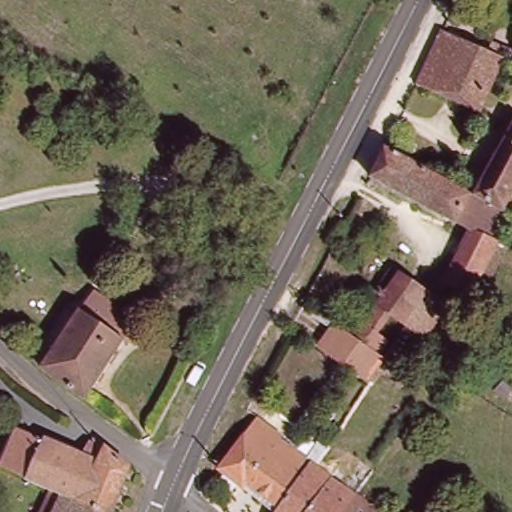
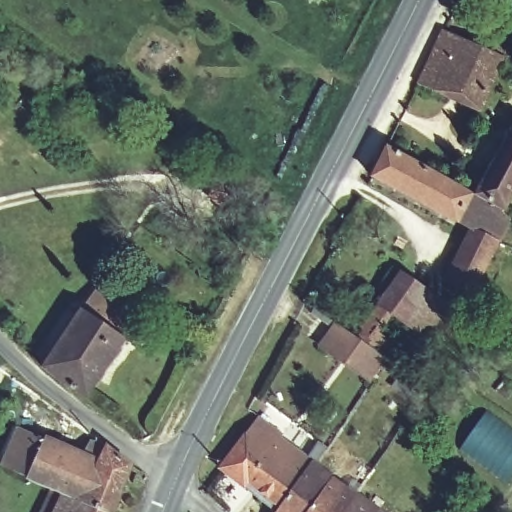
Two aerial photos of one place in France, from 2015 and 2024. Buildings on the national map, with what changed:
unchanged [(482,107),(420,79),(442,31),(489,52),(492,47),(512,57),(512,69),(501,64),(482,107)]
unchanged [(479,237),(383,185),(399,155),(486,203),(512,219),(512,251),(493,285),(483,303),(453,286),(479,237)]
unchanged [(512,219),(486,203),(512,156),(512,219)]
unchanged [(168,241),(161,237),(157,215),(190,166),(243,203),(229,222),(197,199),(168,241)]
unchanged [(399,318),(384,309),(362,343),(352,336),(378,296),(366,289),(382,263),(418,285),(439,298),(419,330),(399,318)]
unchanged [(144,343),(132,344),(88,407),(43,375),(98,300),(151,333),(144,343)]
unchanged [(317,348),(333,323),(352,336),(362,343),(379,354),(391,335),(403,344),(389,362),(384,357),(381,356),(366,380),(317,348)]
new [(512,479),(508,485),(459,449),(489,409),(512,426),(512,479)]
unchanged [(318,465),(284,508),(248,481),(244,486),(221,469),(256,420),(318,465)]
unchanged [(93,442),(134,472),(118,512),(102,512),(62,496),(21,479),(21,476),(0,469),(0,452),(8,427),(85,455),(93,442)]
unchanged [(359,495),(345,512),(281,512),(284,508),(318,465),(320,467),(359,495)]
unchanged [(359,495),(382,512),(345,512),(359,495)]
unchanged [(62,496),(102,512),(55,512),(62,496)]

